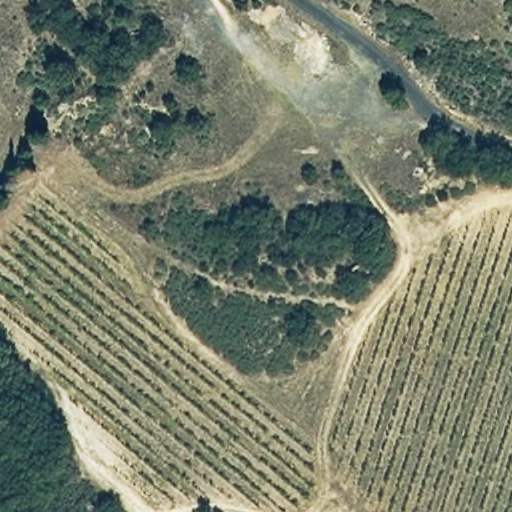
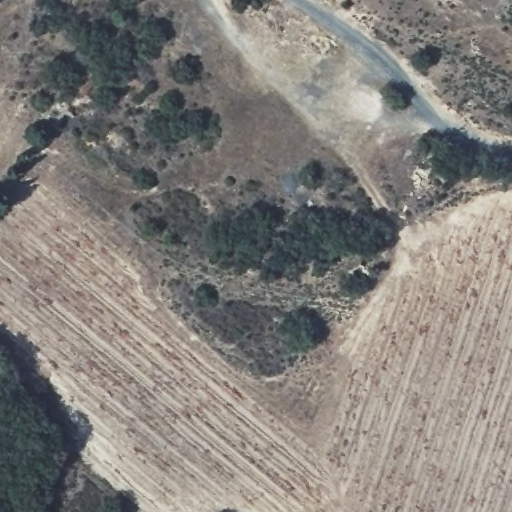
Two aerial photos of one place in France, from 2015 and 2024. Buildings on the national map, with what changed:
unchanged [(361,262),(371,270),(363,283),(351,273),(361,262)]

